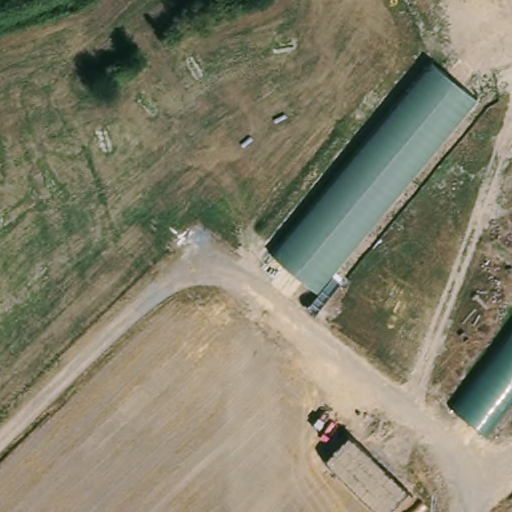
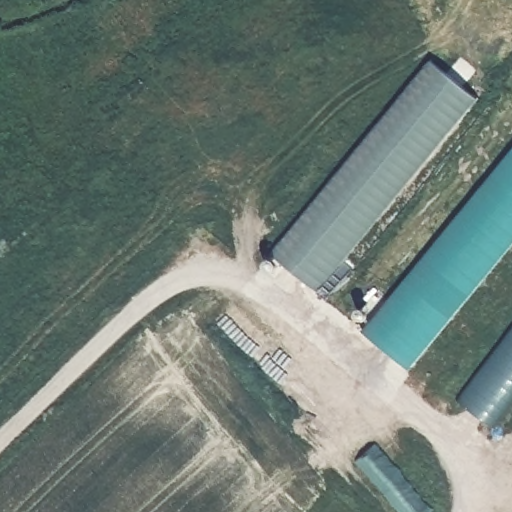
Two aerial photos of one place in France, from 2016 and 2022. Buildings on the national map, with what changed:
unchanged [(417,55),(468,97),(309,295),(257,254),(417,55)]
new [(365,331),(512,154),(512,247),(412,368),(365,331)]

